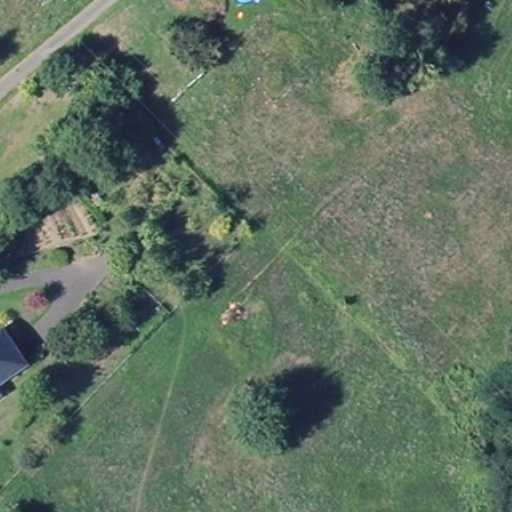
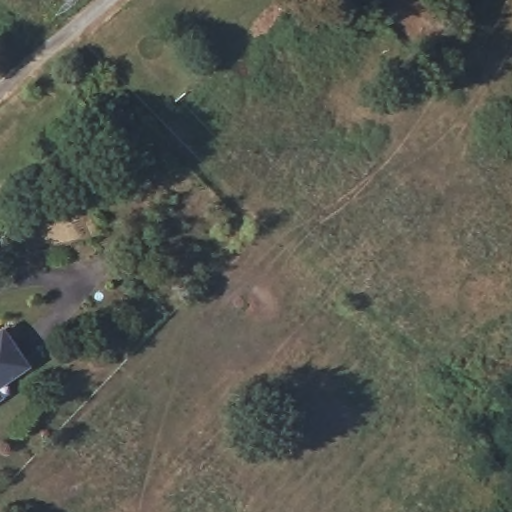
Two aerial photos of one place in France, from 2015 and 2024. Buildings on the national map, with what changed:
unchanged [(7,328),(29,363),(0,381),(0,332),(7,328)]

